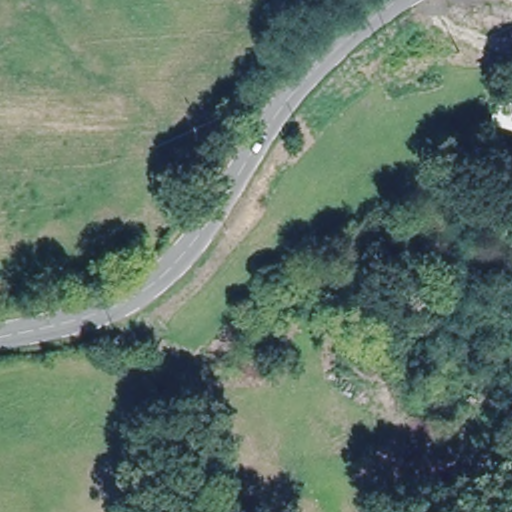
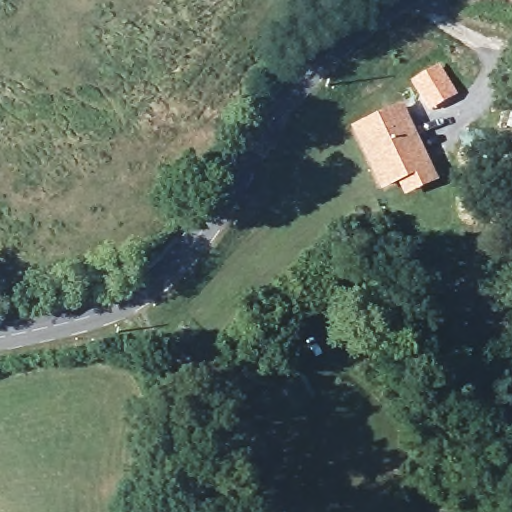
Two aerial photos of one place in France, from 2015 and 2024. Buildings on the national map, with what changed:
new [(439,62),(458,93),(429,110),(411,79),(439,62)]
unchanged [(512,87),(512,130),(491,124),(502,84),(512,87)]
new [(402,100),(438,180),(403,197),(397,184),(379,191),(349,125),(402,100)]

